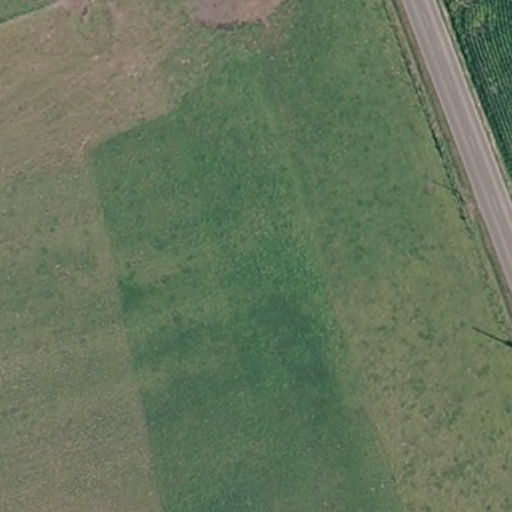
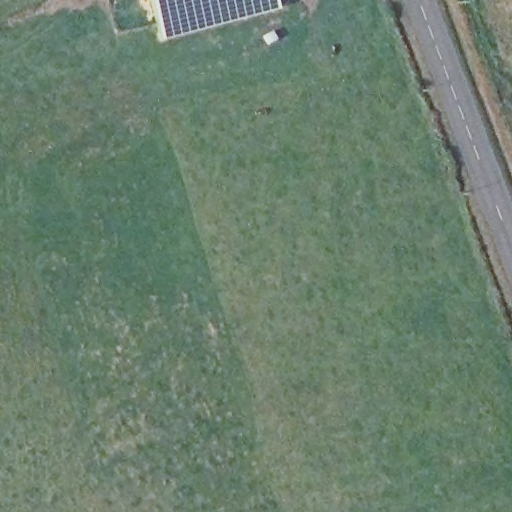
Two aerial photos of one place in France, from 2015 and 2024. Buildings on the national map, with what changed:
new [(161,40),(149,0),(276,0),(279,9),(161,40)]

